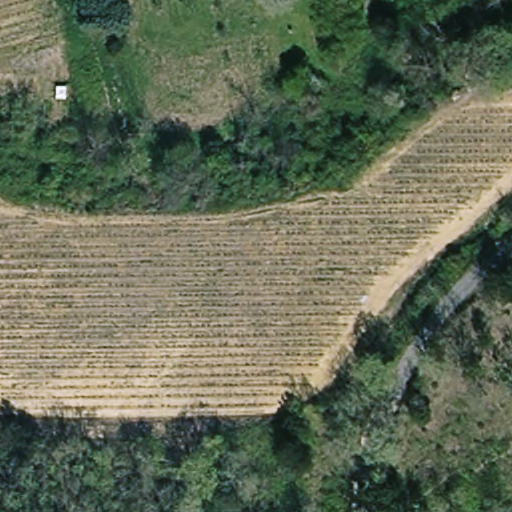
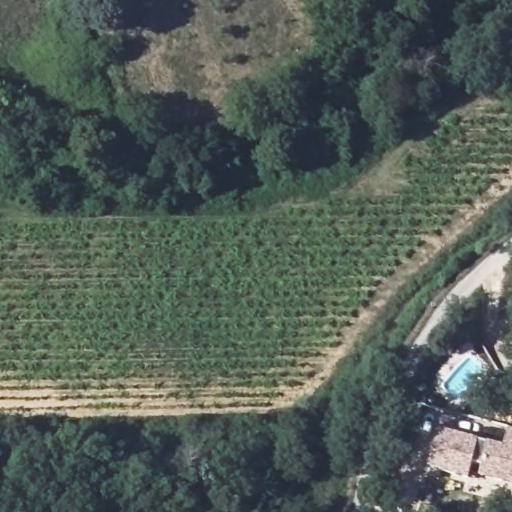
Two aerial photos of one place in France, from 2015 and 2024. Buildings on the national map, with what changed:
new [(479,466),(469,464),(465,478),(427,470),(436,430),(501,445),(505,427),(512,429),(512,484),(476,476),(479,466)]

